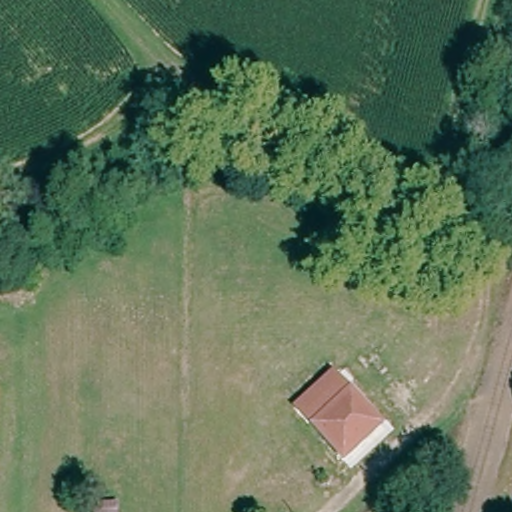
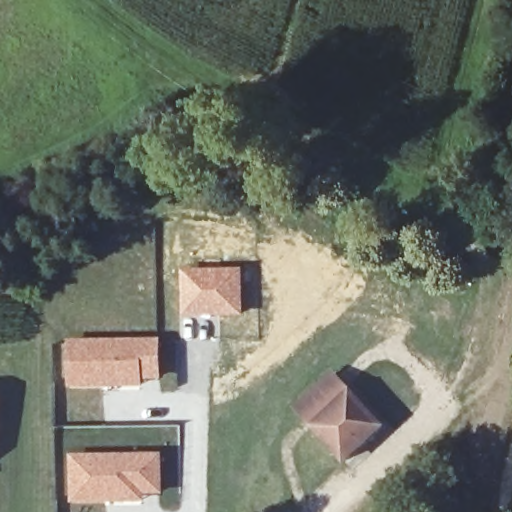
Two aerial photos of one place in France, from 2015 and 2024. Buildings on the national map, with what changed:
new [(180,268),(242,268),(243,316),(180,318),(180,268)]
new [(67,339),(160,337),(161,380),(142,382),(142,386),(67,388),(67,339)]
unchanged [(379,426),(343,458),(315,424),(350,394),(379,426)]
new [(161,452),(162,495),(145,496),(145,502),(67,504),(66,453),(161,452)]

